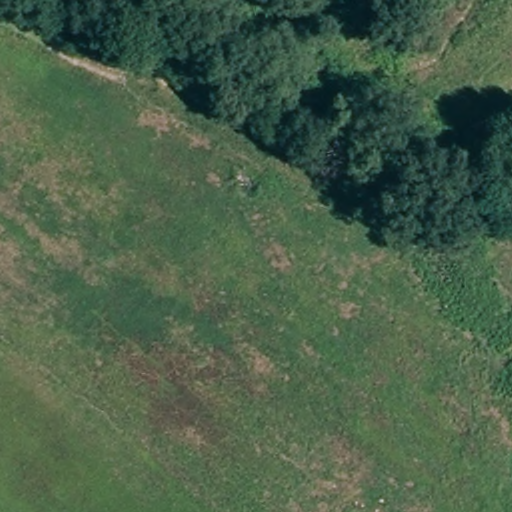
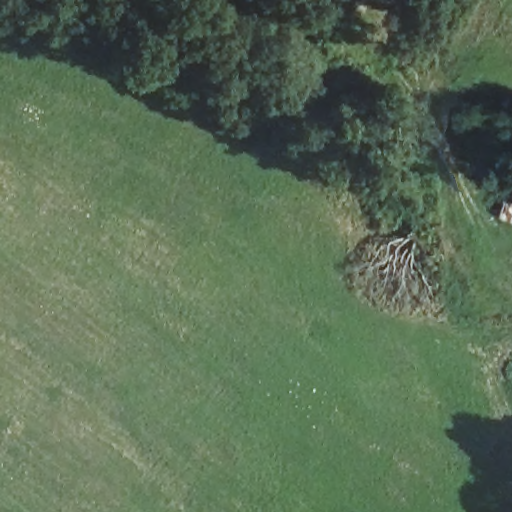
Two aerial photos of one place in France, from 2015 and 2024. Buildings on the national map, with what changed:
unchanged [(503,216),(512,190),(512,219),(503,216)]

